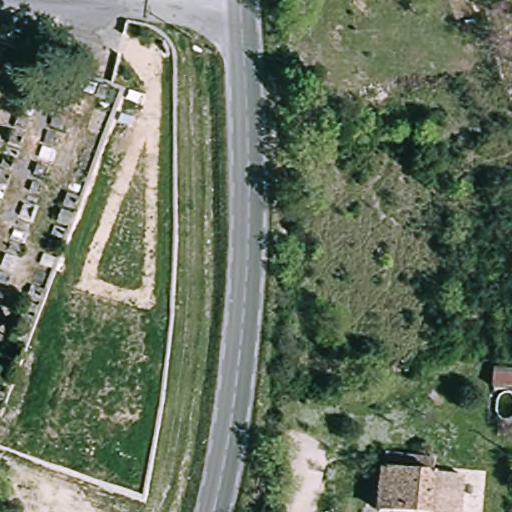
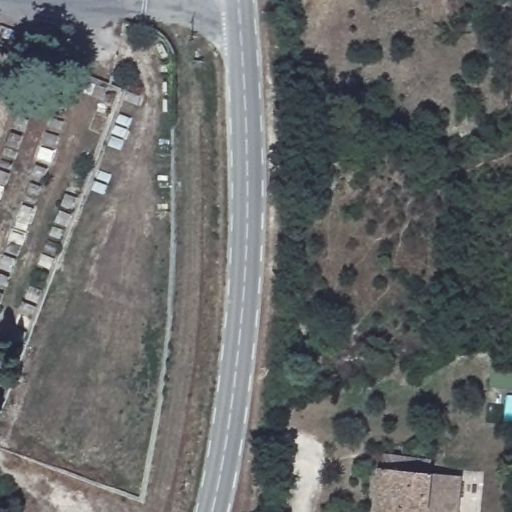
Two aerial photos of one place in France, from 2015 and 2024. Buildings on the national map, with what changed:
unchanged [(27,26),(20,44),(0,37),(0,26),(4,17),(27,26)]
unchanged [(453,490),(450,512),(420,512),(398,509),(377,508),(382,464),(383,451),(432,456),(430,469),(444,471),(443,489),(453,490)]

